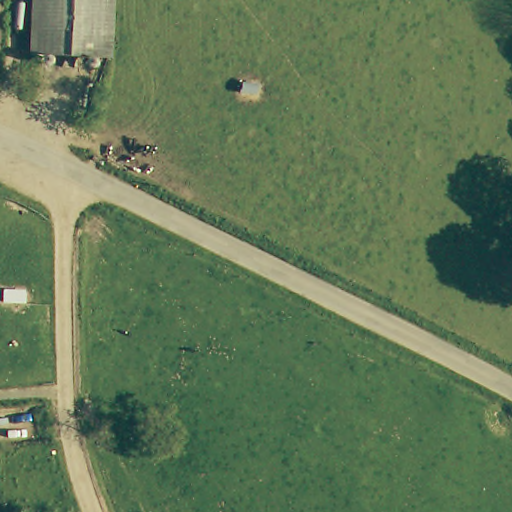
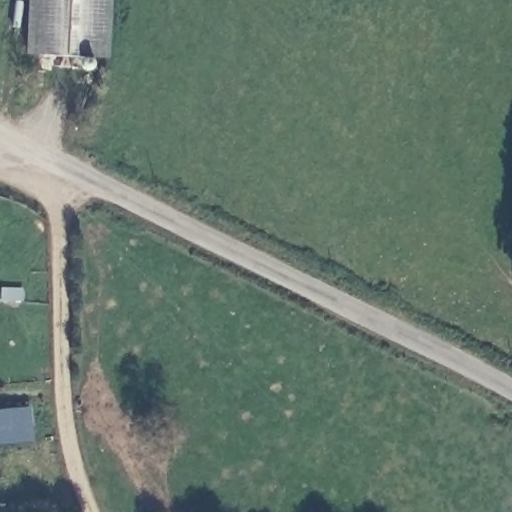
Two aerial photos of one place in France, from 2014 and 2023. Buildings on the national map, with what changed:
unchanged [(27,50),(29,0),(111,0),(109,54),(27,50)]
new [(31,439),(0,442),(0,409),(29,406),(31,439)]

